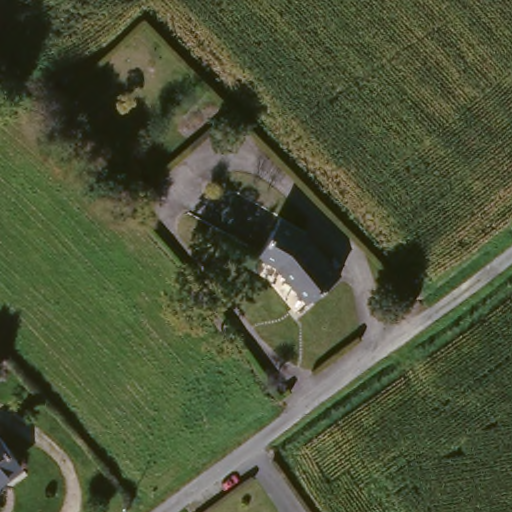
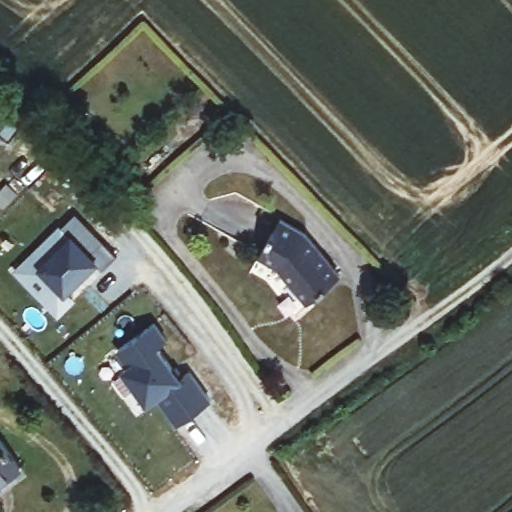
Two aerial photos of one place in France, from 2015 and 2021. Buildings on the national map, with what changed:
new [(7,145),(0,139),(0,114),(19,131),(7,145)]
new [(36,263),(30,257),(75,211),(117,253),(102,268),(95,261),(65,292),(56,283),(42,297),(22,278),(36,263)]
unchanged [(317,298),(304,283),(297,289),(280,269),(252,256),(281,214),(307,231),(345,274),(336,281),(317,298)]
new [(154,317),(166,334),(157,341),(179,372),(189,365),(210,394),(177,419),(157,391),(146,399),(123,366),(129,361),(117,345),(154,317)]
unchanged [(0,478),(0,441),(17,464),(0,478)]

